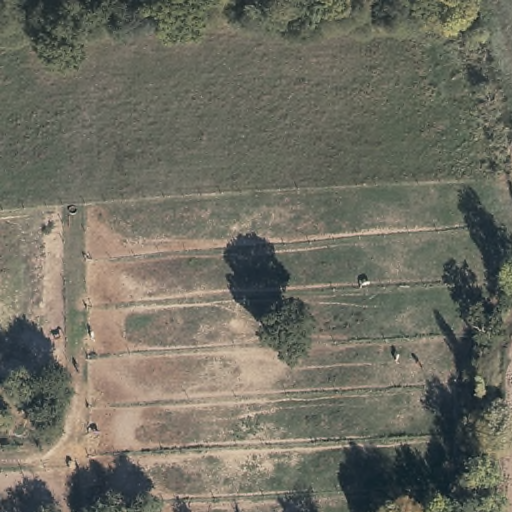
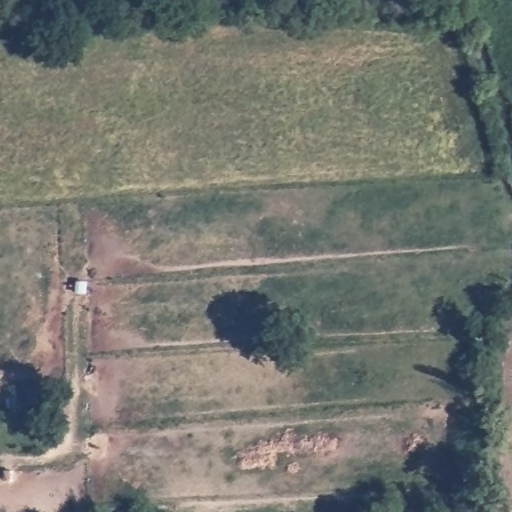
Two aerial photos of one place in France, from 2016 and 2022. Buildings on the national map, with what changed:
[]

